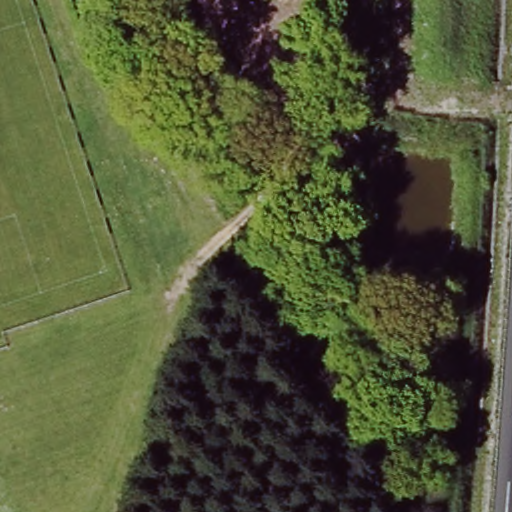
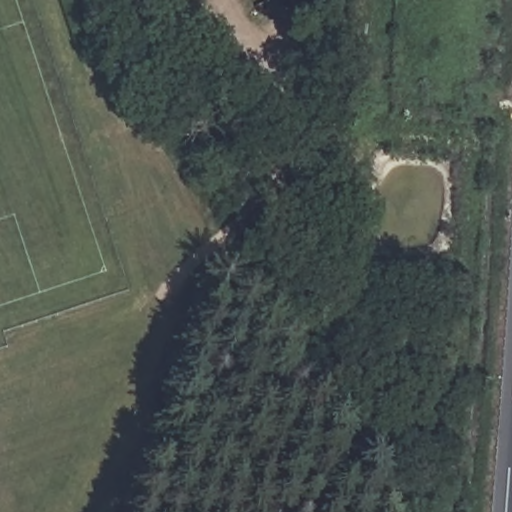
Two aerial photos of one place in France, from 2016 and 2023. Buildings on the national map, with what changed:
unchanged [(143,50),(137,39),(120,0),(185,0),(193,19),(143,50)]

